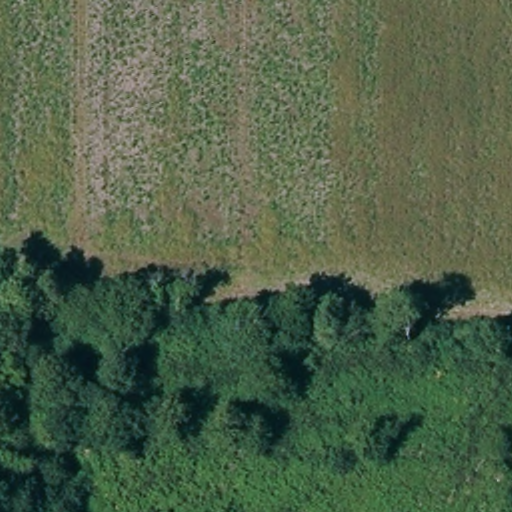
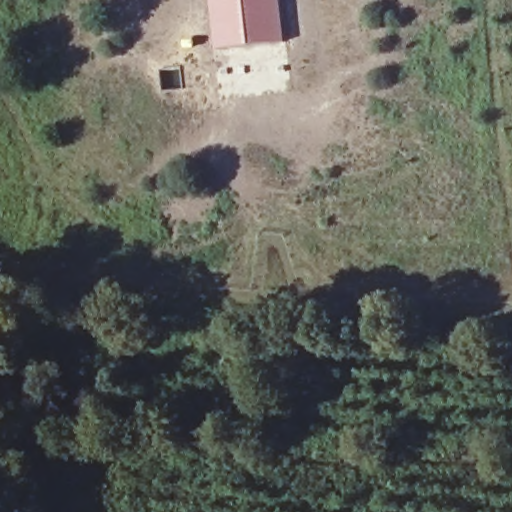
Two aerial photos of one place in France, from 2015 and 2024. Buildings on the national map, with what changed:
new [(210,0),(280,0),(285,42),(216,48),(210,0)]

